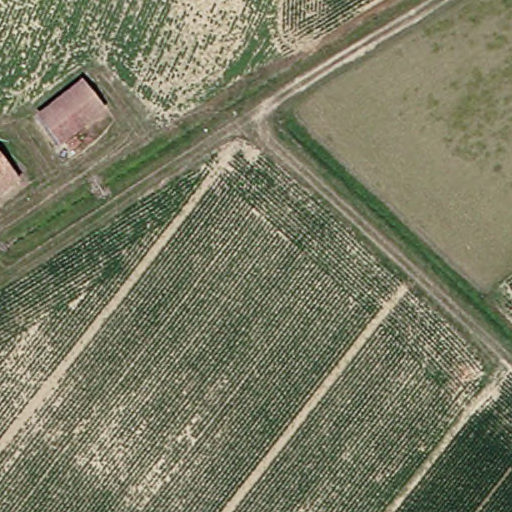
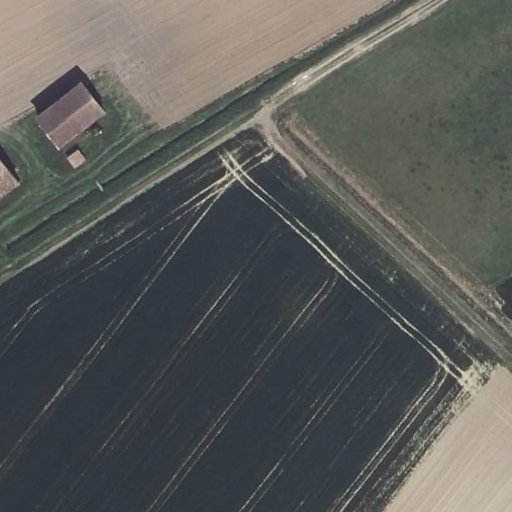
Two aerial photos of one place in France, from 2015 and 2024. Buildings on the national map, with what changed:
unchanged [(84,79),(106,108),(63,141),(41,112),(84,79)]
unchanged [(0,195),(0,136),(29,174),(0,195)]

